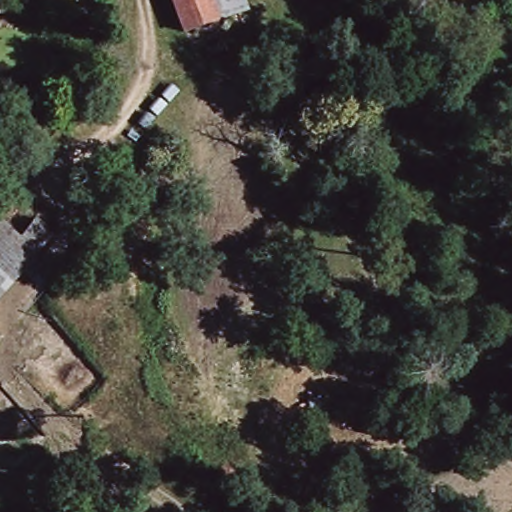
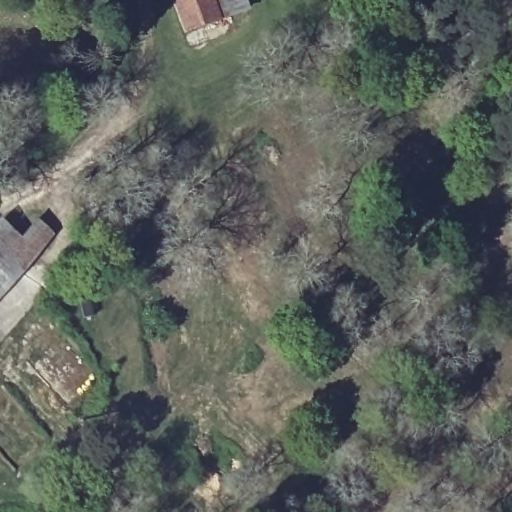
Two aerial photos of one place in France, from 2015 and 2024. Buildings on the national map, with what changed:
unchanged [(46,2),(45,0),(53,0),(46,2)]
unchanged [(219,18),(205,24),(186,31),(174,0),(212,0),(219,18)]
unchanged [(251,11),(228,19),(233,31),(210,39),(205,24),(219,18),(212,0),(247,0),(251,11)]
unchanged [(0,245),(0,220),(18,238),(36,220),(53,237),(20,270),(15,263),(0,245)]
unchanged [(0,279),(0,245),(15,263),(0,279)]

